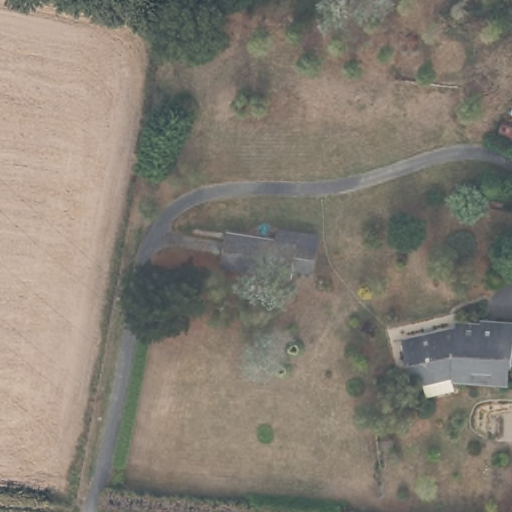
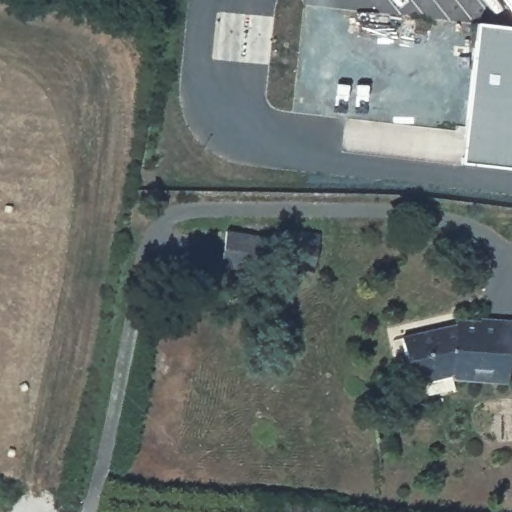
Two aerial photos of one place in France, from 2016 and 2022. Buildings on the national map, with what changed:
new [(461,164),(476,22),(512,27),(512,169),(461,164)]
unchanged [(216,262),(221,227),(272,237),(292,240),(285,275),(216,262)]
unchanged [(274,227),(316,235),(307,279),(285,275),(292,240),(272,237),(274,227)]
unchanged [(506,367),(505,387),(452,385),(449,376),(423,382),(426,399),(413,402),(400,340),(446,328),(448,337),(456,337),(459,323),(480,326),(481,321),(512,323),(512,367),(506,367)]

